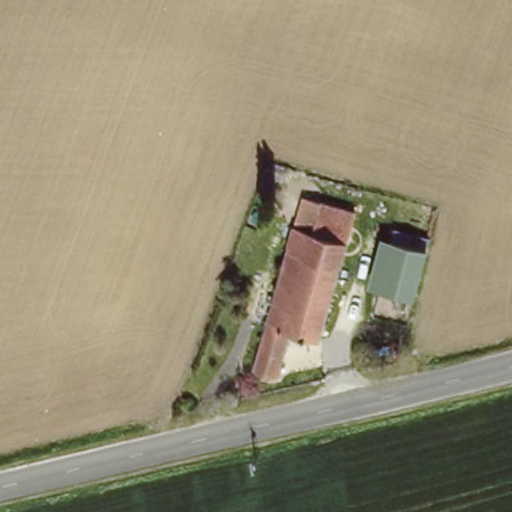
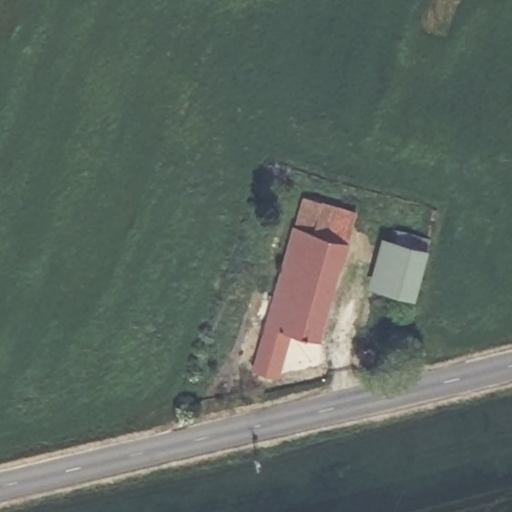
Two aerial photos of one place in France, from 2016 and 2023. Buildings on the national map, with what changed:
unchanged [(304,197),(355,214),(340,263),(307,253),(313,234),(295,229),(304,197)]
unchanged [(295,229),(313,234),(307,253),(340,263),(317,339),(293,332),(278,380),(251,372),(295,229)]
unchanged [(382,235),(426,248),(411,299),(368,286),(382,235)]

